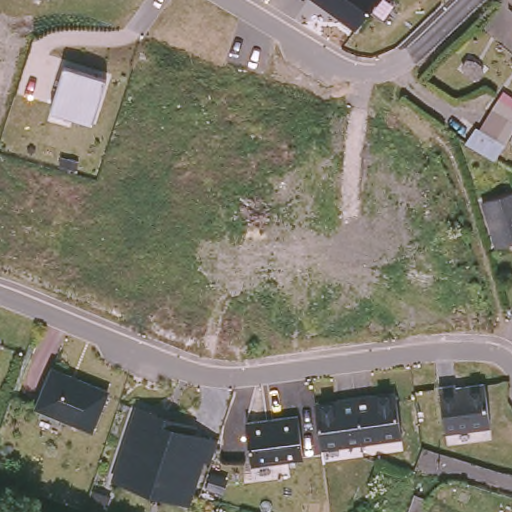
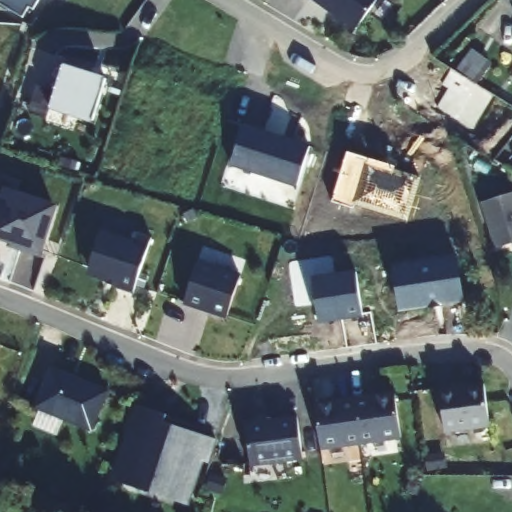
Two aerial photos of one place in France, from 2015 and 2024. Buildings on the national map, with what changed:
new [(28,6),(22,16),(0,3),(0,0),(37,0),(32,9),(28,6)]
unchanged [(314,0),(379,0),(357,31),(314,0)]
unchanged [(105,78),(92,123),(50,110),(64,65),(105,78)]
unchanged [(503,90),(512,96),(512,139),(506,149),(502,146),(478,133),(503,90)]
new [(310,145),(296,188),(231,166),(245,124),(310,145)]
unchanged [(502,146),(490,160),(485,158),(460,144),(472,129),(502,146)]
new [(355,204),(354,209),(332,201),(349,151),(395,165),(395,169),(422,178),(407,220),(355,204)]
new [(0,201),(5,187),(59,205),(44,255),(0,241),(0,201)]
unchanged [(494,249),(480,204),(512,194),(512,243),(494,249)]
new [(115,287),(117,283),(91,274),(88,268),(100,232),(132,243),(136,233),(151,238),(132,292),(115,287)]
new [(392,263),(455,254),(464,301),(400,312),(392,263)]
new [(197,263),(239,274),(227,315),(185,299),(197,263)]
new [(313,277),(356,270),(362,315),(320,323),(313,277)]
unchanged [(109,391),(92,429),(36,407),(52,368),(109,391)]
unchanged [(455,387),(482,383),(490,426),(445,432),(438,386),(455,384),(455,387)]
unchanged [(337,403),(337,402),(354,399),(371,397),(371,398),(394,394),(400,438),(320,449),(314,406),(337,403)]
unchanged [(207,480),(200,478),(192,504),(111,477),(139,402),(202,425),(199,434),(220,438),(212,458),(207,456),(214,459),(207,480)]
unchanged [(304,461),(251,468),(245,422),(297,415),(304,461)]

